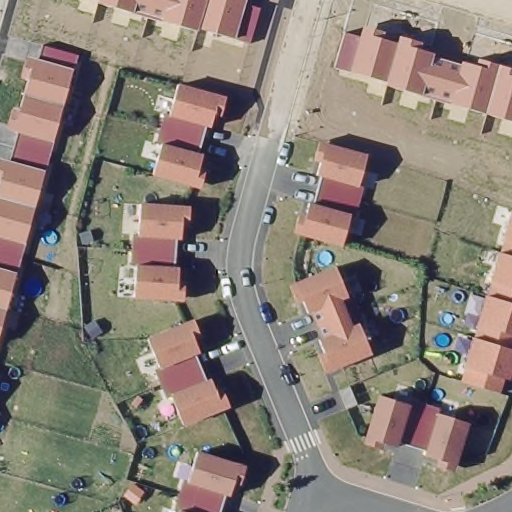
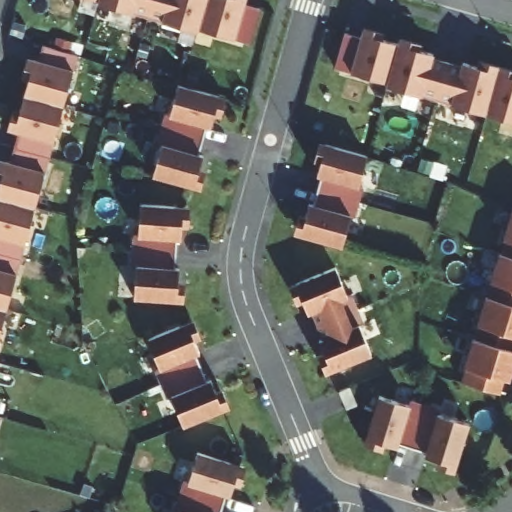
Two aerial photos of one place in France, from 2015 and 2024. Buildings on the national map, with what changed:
unchanged [(260,10),(250,44),(235,40),(197,29),(197,31),(162,21),(134,13),(97,2),(98,0),(247,0),(245,6),(260,10)]
unchanged [(450,105),(422,96),(385,86),(387,81),(351,72),(335,68),(345,34),(360,37),(362,26),(385,33),(384,39),(397,44),(400,36),(422,43),(420,50),(434,54),(432,58),(460,66),(461,61),(475,66),(477,60),(498,66),(512,70),(512,121),(485,114),(450,105)]
unchanged [(0,181),(0,180),(0,158),(12,160),(18,133),(7,130),(12,108),(21,110),(25,96),(30,79),(20,78),(27,56),(39,60),(43,46),(77,56),(72,70),(62,106),(52,143),(45,171),(34,209),(25,244),(17,273),(5,311),(0,330),(0,183),(0,181)]
unchanged [(153,176),(162,144),(156,141),(162,113),(169,115),(178,84),(226,96),(221,118),(214,116),(211,129),(205,126),(197,155),(202,156),(200,169),(206,172),(200,190),(153,176)]
unchanged [(299,214),(305,217),(310,203),(314,204),(322,179),(317,176),(320,163),(313,161),(319,141),(367,155),(360,188),(364,189),(356,220),(350,218),(342,248),(292,233),(299,214)]
unchanged [(136,265),(130,265),(132,236),(138,237),(140,204),(190,207),(190,228),(182,227),(181,241),(177,241),(175,267),(180,267),(180,282),(185,283),(184,303),(134,300),(136,265)]
unchanged [(512,210),(512,374),(511,380),(505,379),(500,394),(462,382),(465,369),(472,338),(477,324),(485,296),(492,282),(500,253),(503,242),(511,210),(512,210)]
unchanged [(335,267),(349,298),(352,296),(365,326),(361,327),(371,355),(325,373),(319,356),(324,353),(319,340),(322,339),(312,312),(309,314),(304,301),(295,304),(289,286),(335,267)]
unchanged [(172,396),(165,398),(155,371),(160,370),(148,337),(195,319),(203,338),(196,341),(202,353),(195,356),(205,381),(210,379),(216,391),(224,388),(230,408),(182,427),(172,396)]
unchanged [(379,397),(408,406),(410,401),(440,411),(438,414),(468,424),(454,471),(437,467),(438,461),(425,457),(426,452),(397,443),(396,447),(384,443),(381,449),(365,444),(379,397)]
unchanged [(180,512),(175,511),(184,482),(187,483),(197,453),(246,468),(240,485),(234,483),(230,497),(225,495),(220,512),(179,512),(180,512)]

